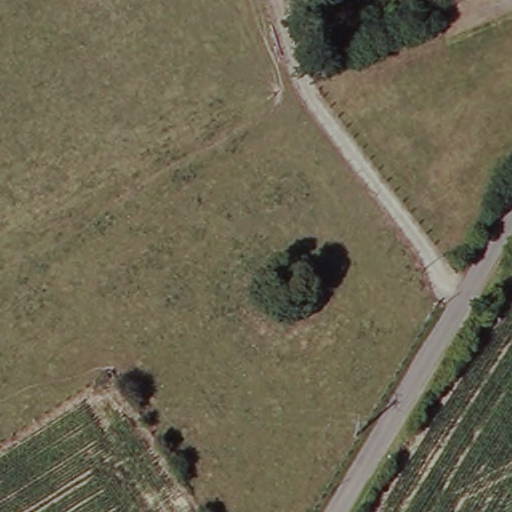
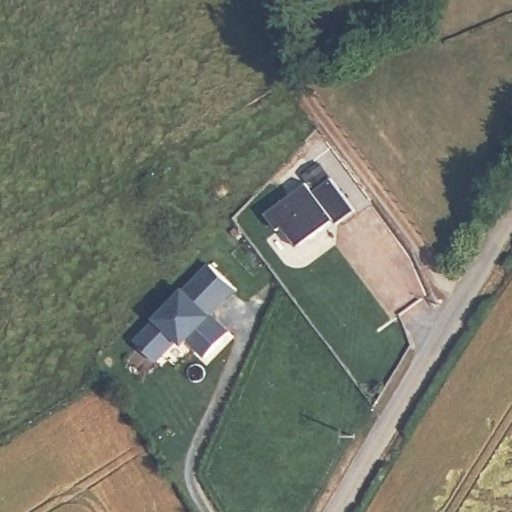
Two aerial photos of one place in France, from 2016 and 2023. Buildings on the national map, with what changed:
new [(308,182),(315,190),(332,177),(356,209),(338,223),(335,219),(299,246),(284,226),(280,229),(267,213),(308,182)]
new [(212,264),(237,288),(212,314),(231,331),(208,355),(185,333),(159,361),(139,341),(212,264)]

